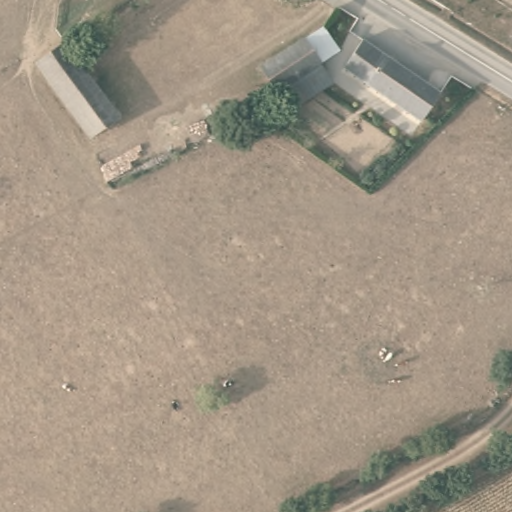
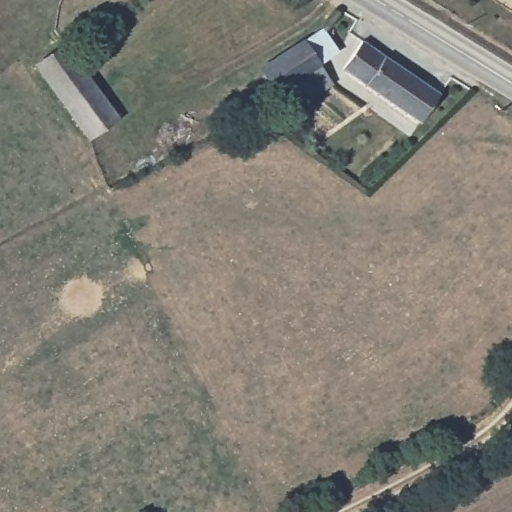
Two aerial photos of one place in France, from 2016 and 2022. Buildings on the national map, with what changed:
unchanged [(285,89),(278,92),(262,67),(304,42),(326,28),(341,52),(318,64),(322,71),(331,87),(297,108),(288,93),(285,89)]
unchanged [(442,93),(423,122),(344,69),(367,38),(442,93)]
unchanged [(40,64),(71,44),(122,120),(92,140),(40,64)]

